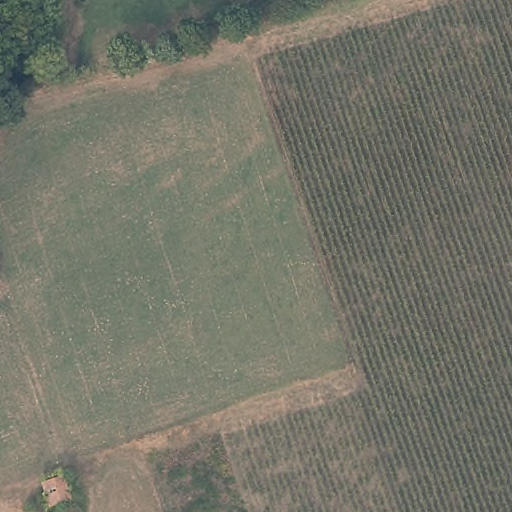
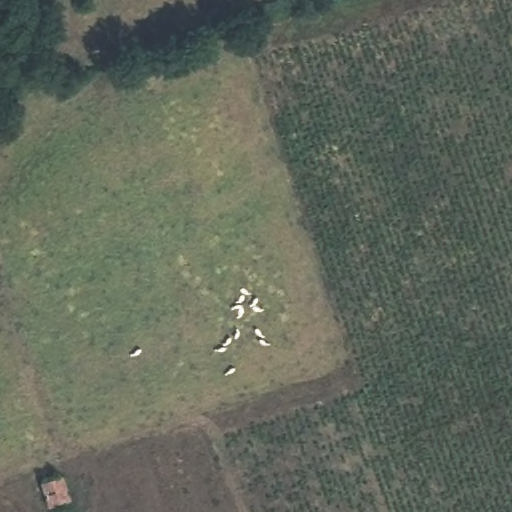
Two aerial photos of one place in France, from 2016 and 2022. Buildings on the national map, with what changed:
unchanged [(66,472),(73,496),(52,501),(46,479),(46,477),(66,472)]

